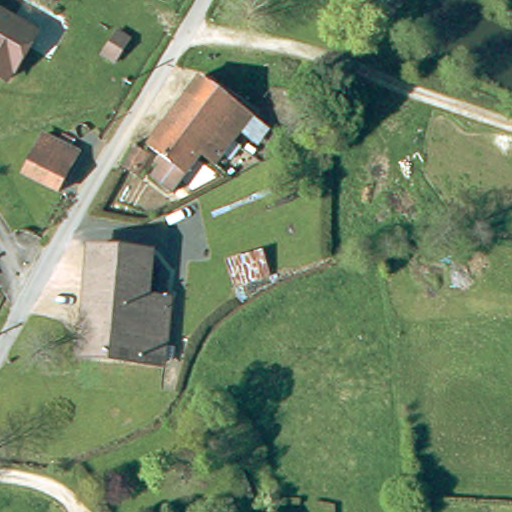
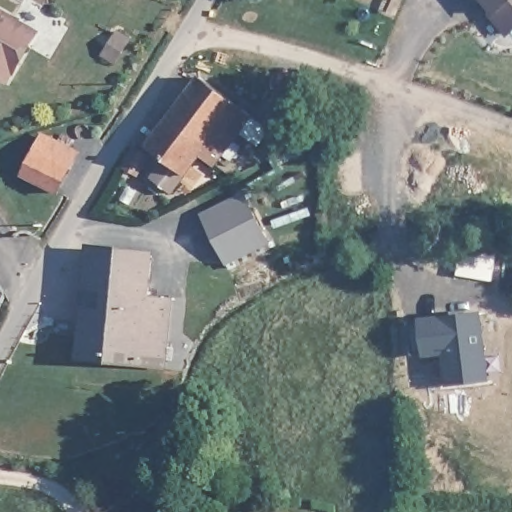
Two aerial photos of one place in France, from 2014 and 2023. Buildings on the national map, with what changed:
new [(472,0),(512,0),(512,33),(507,37),(487,13),(490,10),(482,0),(476,5),(472,0)]
unchanged [(42,36),(13,86),(0,78),(0,10),(42,36)]
unchanged [(108,61),(115,49),(124,37),(135,45),(127,60),(120,69),(108,61)]
unchanged [(256,125),(217,173),(207,164),(173,204),(153,188),(162,177),(158,174),(167,164),(153,153),(209,86),(256,125)]
unchanged [(24,176),(45,140),(79,159),(58,195),(24,176)]
unchanged [(150,156),(139,183),(125,178),(136,150),(150,156)]
new [(245,191),(270,241),(225,265),(199,213),(245,191)]
unchanged [(155,302),(180,304),(174,367),(83,356),(92,256),(159,262),(155,302)]
demolished [(269,286),(230,295),(227,265),(265,261),(269,286)]
new [(425,357),(424,352),(413,353),(410,322),(420,321),(420,317),(483,309),(490,380),(447,386),(444,354),(425,357)]

